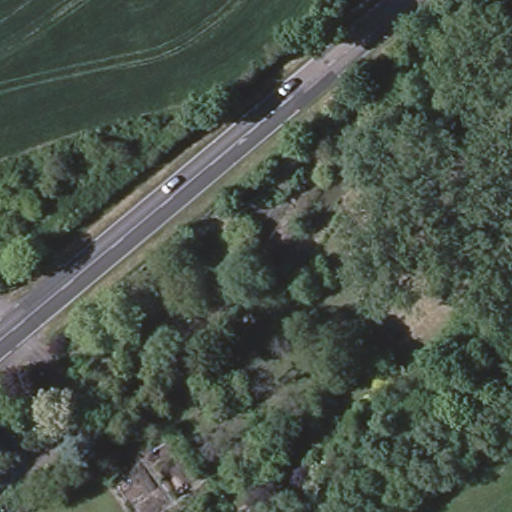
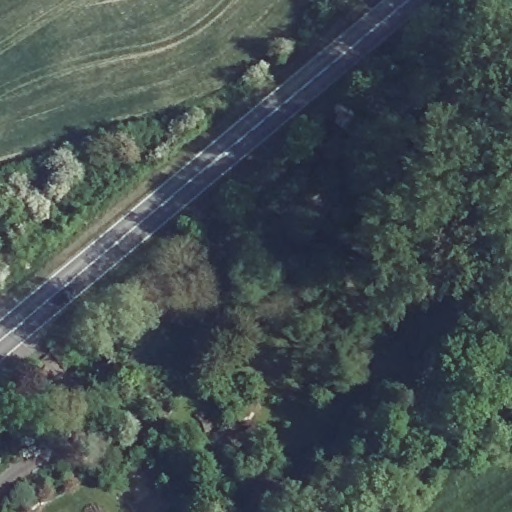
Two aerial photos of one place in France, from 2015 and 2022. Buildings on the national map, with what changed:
[]

